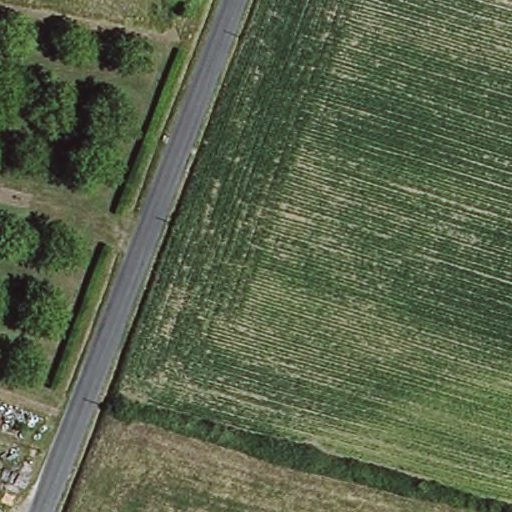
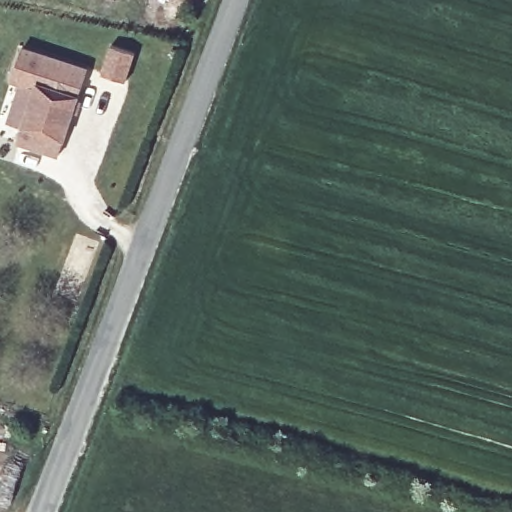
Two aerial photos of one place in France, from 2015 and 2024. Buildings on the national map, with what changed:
new [(89,67),(59,155),(17,141),(35,88),(12,80),(23,45),(89,67)]
demolished [(59,419),(48,446),(24,438),(34,411),(59,419)]

